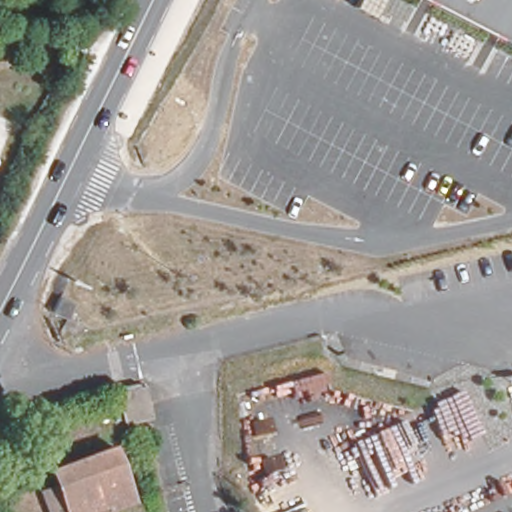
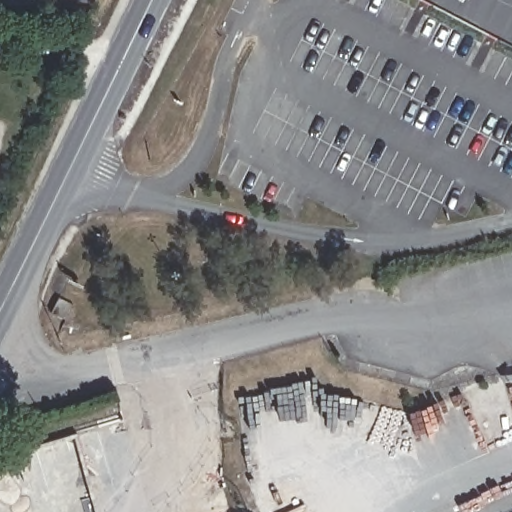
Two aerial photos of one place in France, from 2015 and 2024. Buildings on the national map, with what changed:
unchanged [(512,0),(512,45),(423,0),(512,0)]
demolished [(137,381),(139,385),(144,384),(151,417),(123,424),(116,388),(137,381)]
demolished [(110,441),(132,494),(111,505),(113,512),(61,512),(44,465),(110,440),(110,441)]

